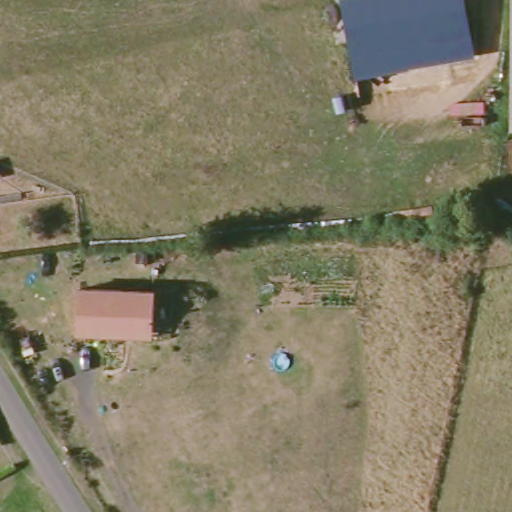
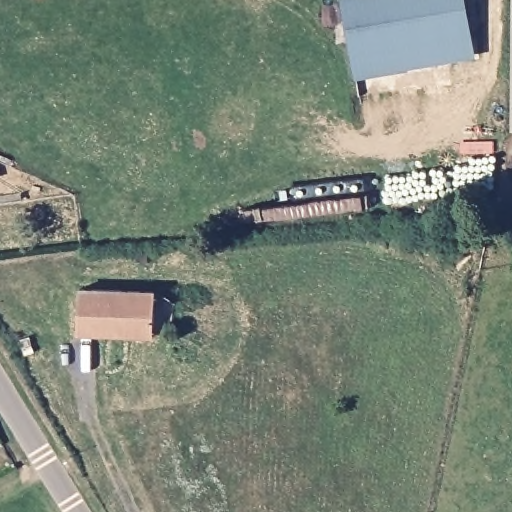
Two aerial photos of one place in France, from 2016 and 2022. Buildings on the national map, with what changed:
unchanged [(342,0),(465,0),(475,57),(355,78),(342,0)]
unchanged [(507,128),(509,0),(512,0),(512,128),(507,128)]
unchanged [(127,328),(83,326),(85,283),(161,287),(160,318),(159,329),(127,328)]

